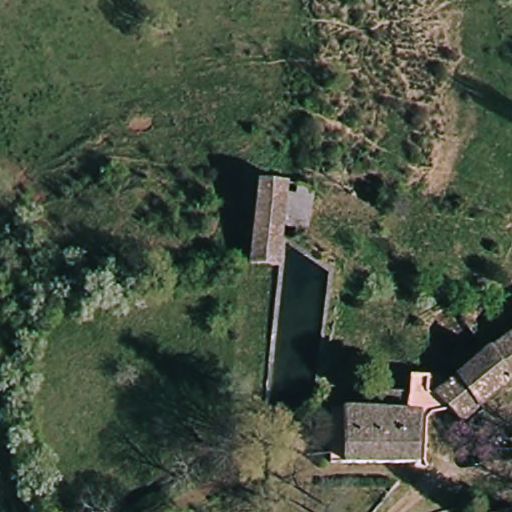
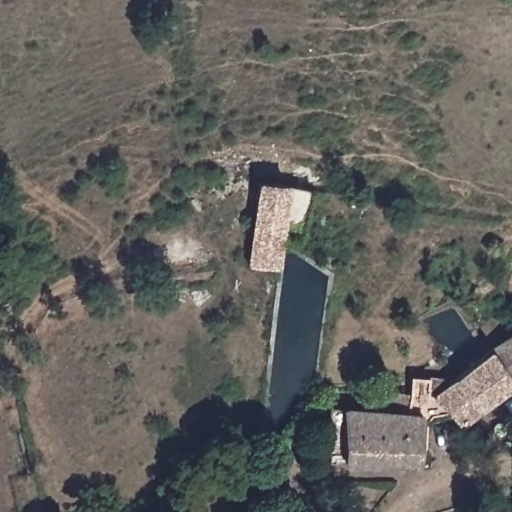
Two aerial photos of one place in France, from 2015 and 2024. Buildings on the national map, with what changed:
unchanged [(263,182),(287,184),(281,240),(278,266),(255,266),(256,235),(263,182)]
unchanged [(432,379),(447,381),(489,345),(512,326),(512,381),(461,423),(431,385),(432,379)]
unchanged [(427,464),(324,462),(325,457),(299,456),(300,441),(326,442),(328,407),(379,410),(380,391),(406,392),(407,382),(432,379),(431,385),(427,464)]
unchanged [(477,463),(483,461),(485,467),(480,469),(477,463)]
unchanged [(512,508),(512,512),(500,512),(512,508)]

